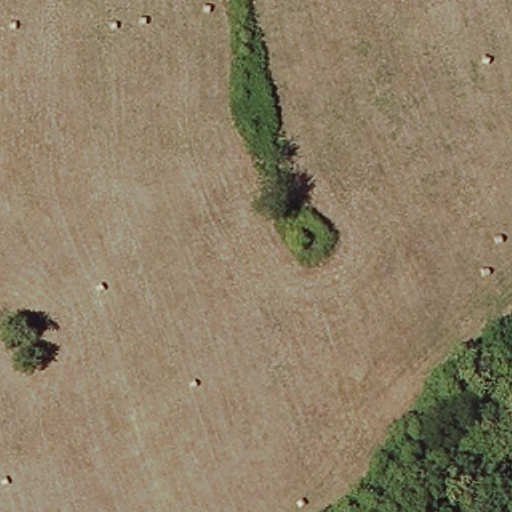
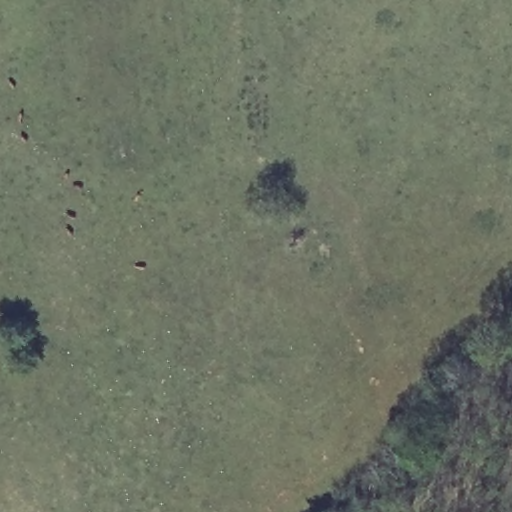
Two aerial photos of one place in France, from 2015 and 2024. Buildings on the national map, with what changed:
[]

